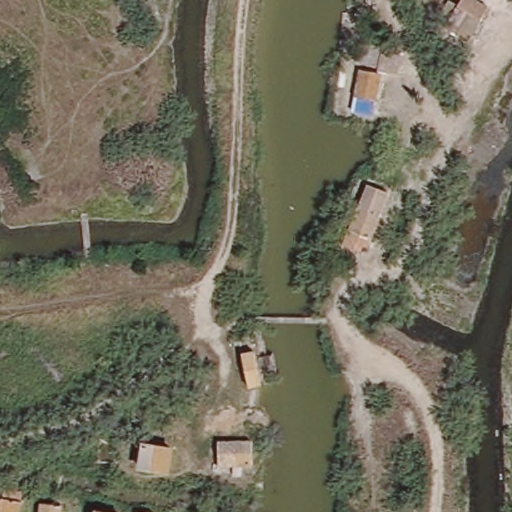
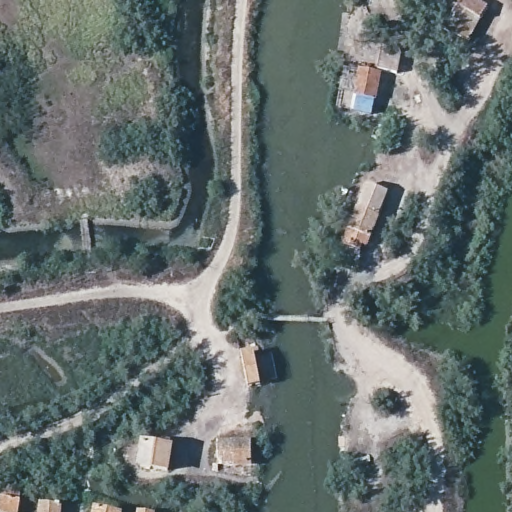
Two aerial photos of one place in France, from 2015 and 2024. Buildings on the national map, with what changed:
unchanged [(452,39),(440,31),(446,21),(437,15),(446,2),(455,6),(459,0),(476,0),(488,7),(478,25),(466,46),(452,39)]
unchanged [(390,50),(376,115),(355,110),(362,71),(352,66),(356,43),(390,50)]
unchanged [(405,54),(401,75),(386,72),(391,50),(405,54)]
unchanged [(428,119),(425,143),(408,139),(410,114),(428,119)]
unchanged [(345,233),(352,211),(361,187),(388,195),(378,220),(371,242),(345,233)]
unchanged [(264,353),(268,383),(244,388),(240,356),(264,353)]
unchanged [(251,438),(252,461),(245,461),(220,461),(219,439),(243,438),(251,438)]
unchanged [(168,450),(165,473),(136,469),(139,446),(168,450)]
unchanged [(204,498),(180,498),(180,483),(203,485),(204,498)]
unchanged [(22,494),(20,512),(0,512),(0,496),(1,490),(22,494)]
unchanged [(60,507),(59,512),(38,512),(40,504),(60,507)]
unchanged [(114,512),(98,512),(98,510),(114,512)]

